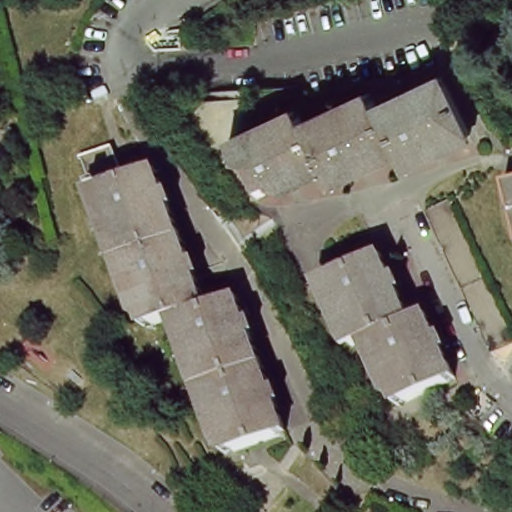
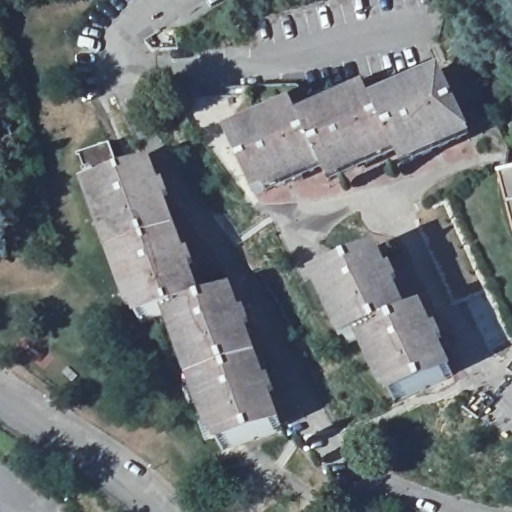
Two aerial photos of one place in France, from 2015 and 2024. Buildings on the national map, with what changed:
unchanged [(475,133),(408,164),(401,150),(335,181),(328,166),(262,198),(234,139),(301,108),(308,123),(374,91),(380,106),(447,75),(475,133)]
unchanged [(152,165),(201,303),(232,292),(281,430),(220,452),(171,314),(141,324),(92,186),(81,154),(111,143),(122,176),(152,165)]
unchanged [(512,182),(512,211),(505,183),(512,182)]
unchanged [(450,196),(492,288),(512,331),(512,342),(490,352),(423,209),(450,196)]
unchanged [(250,252),(263,244),(280,268),(268,277),(250,252)]
unchanged [(395,391),(370,337),(356,344),(325,277),(383,250),(415,316),(429,310),(460,376),(402,404),(395,391)]

